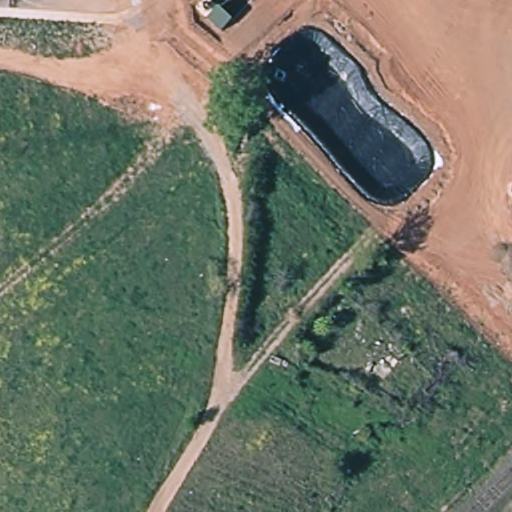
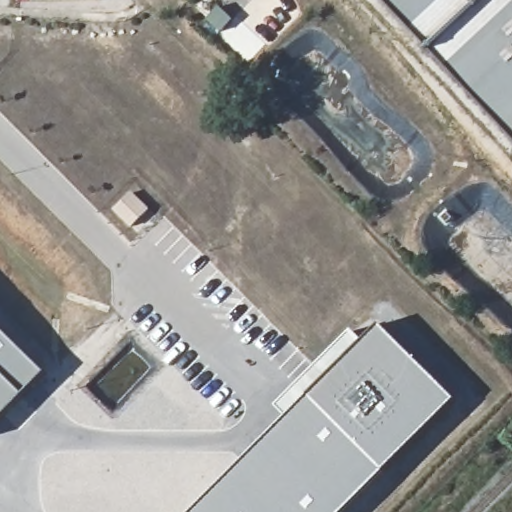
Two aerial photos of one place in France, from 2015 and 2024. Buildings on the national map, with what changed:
new [(430,48),(384,0),(512,0),(512,138),(430,48)]
unchanged [(219,6),(233,20),(221,34),(208,18),(219,6)]
demolished [(256,64),(249,88),(230,84),(236,59),(256,64)]
demolished [(382,334),(392,322),(405,336),(387,361),(361,342),(369,329),(382,334)]
new [(275,405),(351,329),(364,341),(380,324),(455,400),(343,512),(192,512),(286,418),(275,405)]
new [(0,421),(0,329),(46,375),(0,421)]

